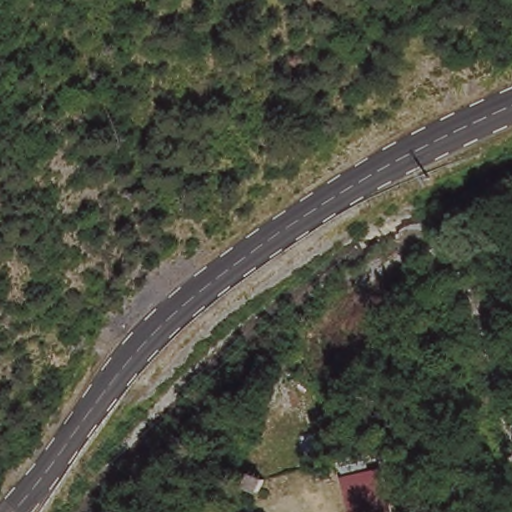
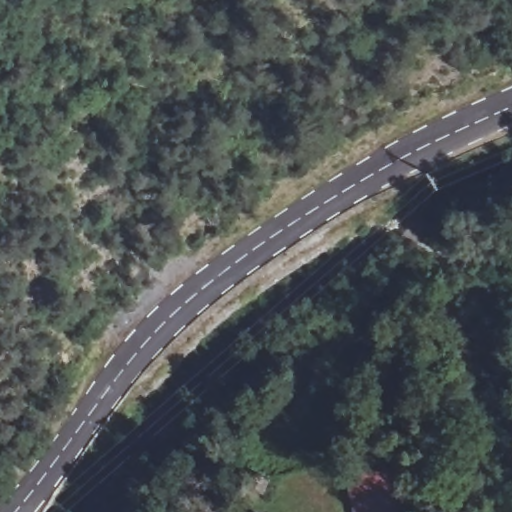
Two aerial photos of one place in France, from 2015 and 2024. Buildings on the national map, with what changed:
unchanged [(263,492),(261,505),(246,502),(248,488),(263,492)]
unchanged [(348,499),(369,495),(372,512),(351,512),(348,499)]

